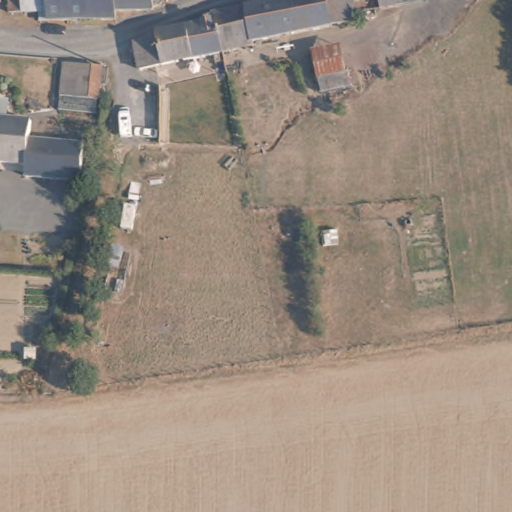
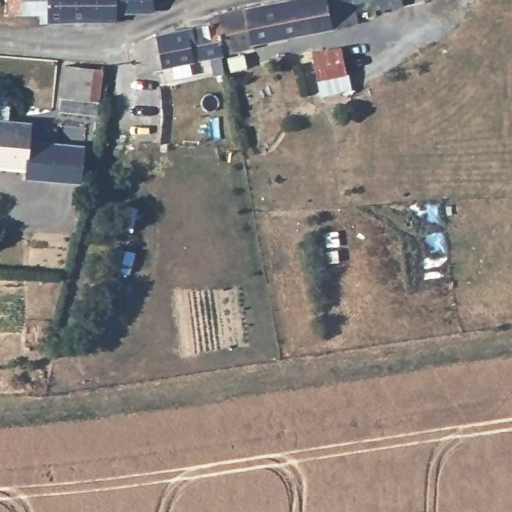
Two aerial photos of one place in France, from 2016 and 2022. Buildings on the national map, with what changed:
unchanged [(80,22),(32,21),(32,14),(11,14),(11,0),(81,0),(80,22)]
unchanged [(157,9),(112,10),(112,21),(80,22),(81,0),(158,0),(157,9)]
unchanged [(232,0),(261,0),(263,39),(227,42),(199,45),(145,59),(139,26),(192,9),(192,4),(232,0)]
unchanged [(400,7),(364,11),(365,27),(263,39),(261,0),(400,0),(400,7)]
unchanged [(351,50),(352,75),(307,79),(304,55),(351,50)]
unchanged [(105,67),(101,106),(59,101),(65,62),(105,67)]
unchanged [(28,122),(27,140),(81,144),(78,182),(23,177),(25,162),(0,159),(0,119),(28,122)]

